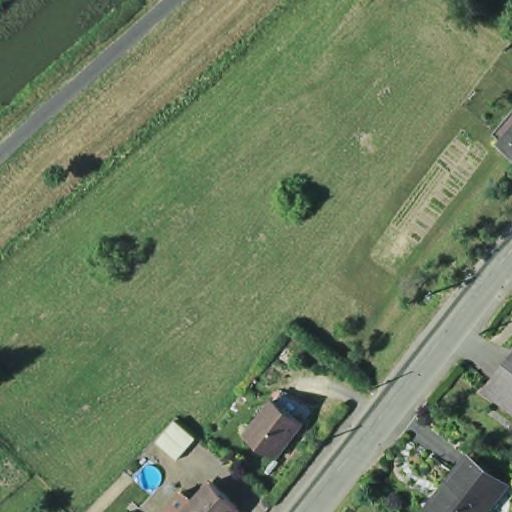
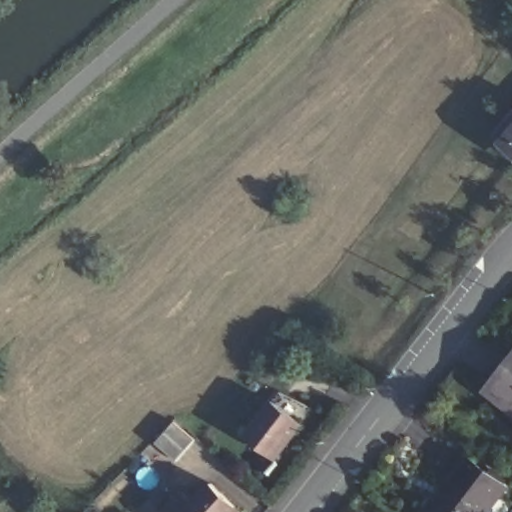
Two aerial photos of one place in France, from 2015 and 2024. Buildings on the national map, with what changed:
unchanged [(512,122),(512,155),(495,139),(512,122)]
unchanged [(491,396),(512,368),(512,414),(491,396)]
unchanged [(300,428),(301,429),(275,463),(261,452),(248,441),(245,439),(271,405),(274,407),(287,417),(300,428)]
unchanged [(442,492),(467,460),(504,490),(487,512),(433,512),(446,495),(442,492)]
unchanged [(187,506),(205,487),(207,488),(220,499),(231,509),(228,512),(163,512),(176,496),(187,506)]

